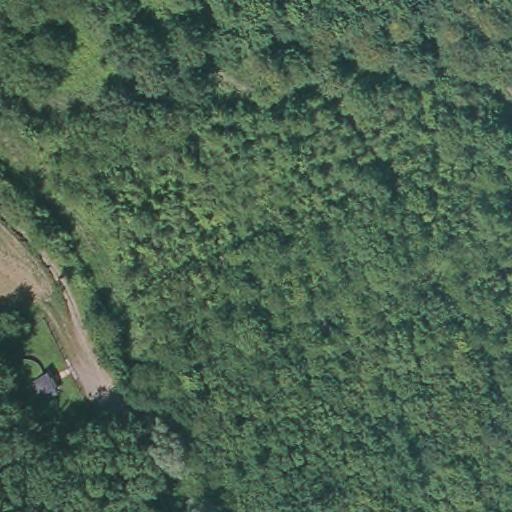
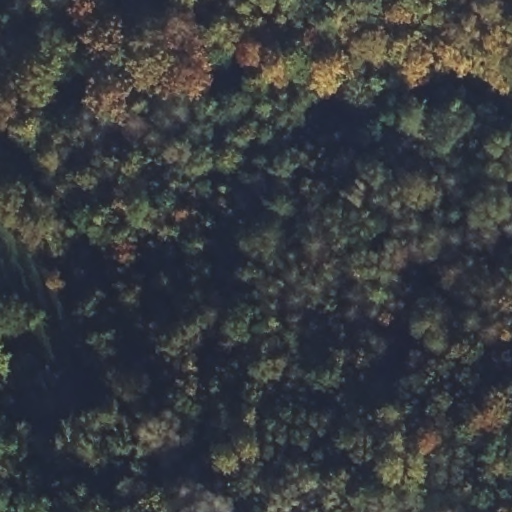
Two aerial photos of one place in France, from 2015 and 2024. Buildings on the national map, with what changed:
[]

